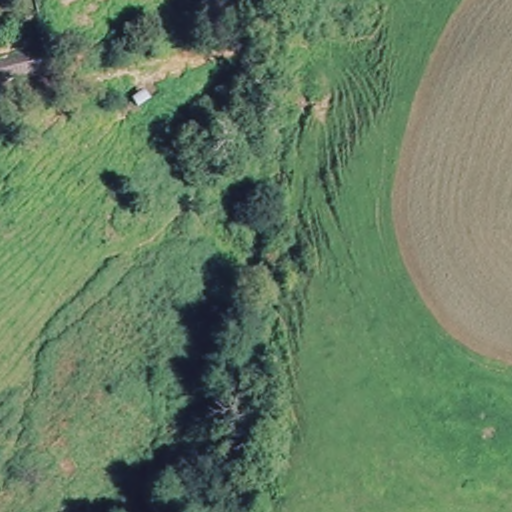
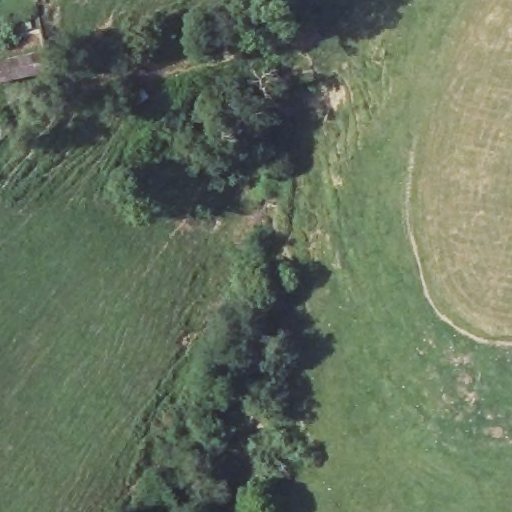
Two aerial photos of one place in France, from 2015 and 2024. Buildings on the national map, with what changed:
unchanged [(45,51),(50,71),(0,82),(0,61),(45,51)]

